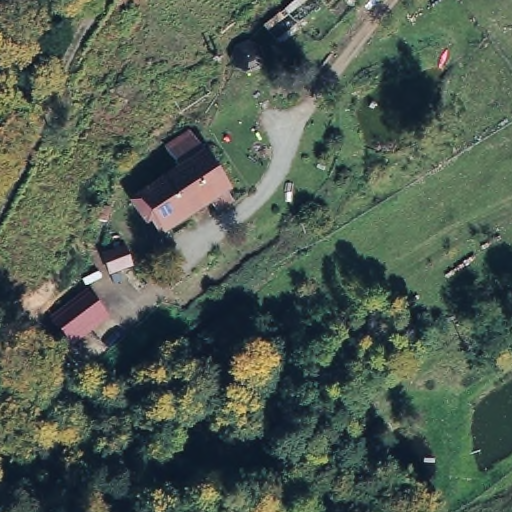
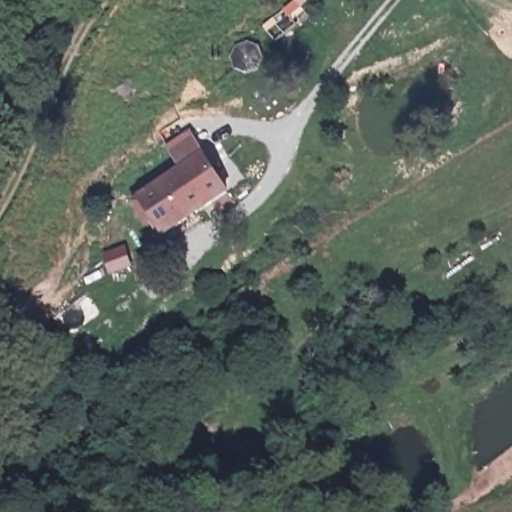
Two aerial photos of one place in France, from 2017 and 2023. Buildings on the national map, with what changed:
unchanged [(117,202),(200,151),(224,190),(145,239),(125,219),(117,202)]
unchanged [(102,242),(104,254),(127,247),(134,268),(90,281),(83,248),(102,242)]
unchanged [(89,290),(120,336),(80,366),(49,320),(89,290)]

